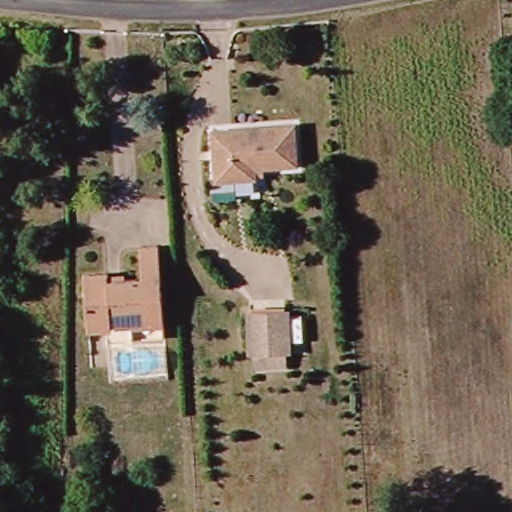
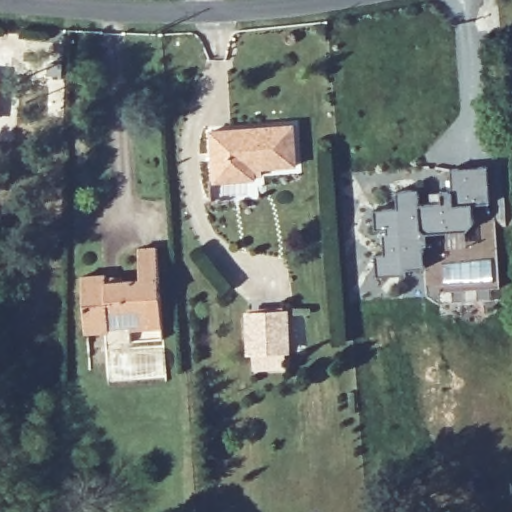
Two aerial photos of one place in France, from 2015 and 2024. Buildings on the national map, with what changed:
unchanged [(214,177),(211,125),(291,122),(293,160),(252,163),(253,175),(214,177)]
new [(376,255),(385,254),(383,233),(387,233),(387,226),(375,227),(374,209),(399,207),(398,190),(418,189),(419,203),(432,202),(431,193),(454,190),(453,169),(489,166),(491,202),(475,204),(476,219),(467,229),(426,233),(426,244),(422,244),(423,265),(409,265),(409,272),(377,274),(376,255)]
unchanged [(151,327),(82,334),(78,278),(105,277),(106,284),(138,280),(135,251),(154,249),(159,300),(163,327),(151,327)]
unchanged [(254,354),(252,314),(288,313),(290,352),(254,354)]

